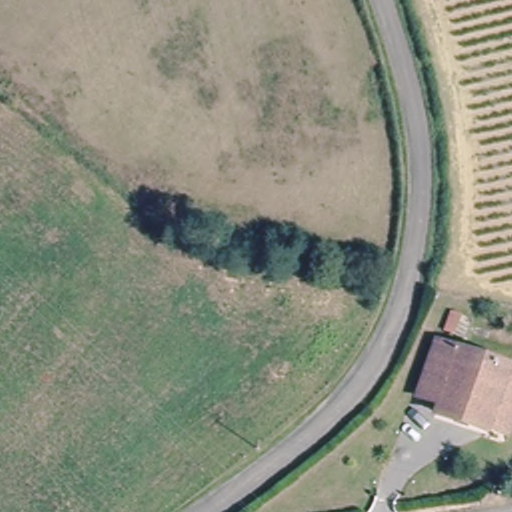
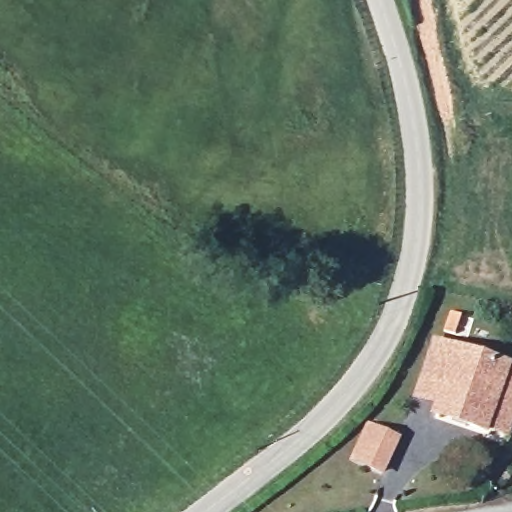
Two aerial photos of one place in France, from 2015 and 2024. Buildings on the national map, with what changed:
unchanged [(447,314),(471,324),(461,353),(436,344),(447,314)]
unchanged [(430,421),(434,409),(413,401),(431,347),(502,372),(477,437),(430,421)]
unchanged [(512,375),(512,409),(500,445),(477,437),(502,372),(512,375)]
new [(402,438),(384,478),(348,462),(367,421),(402,438)]

